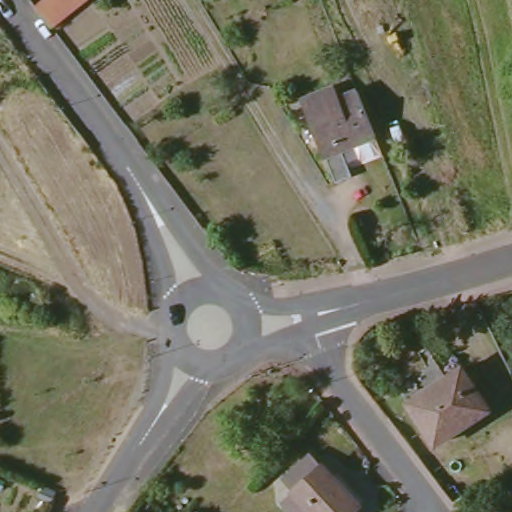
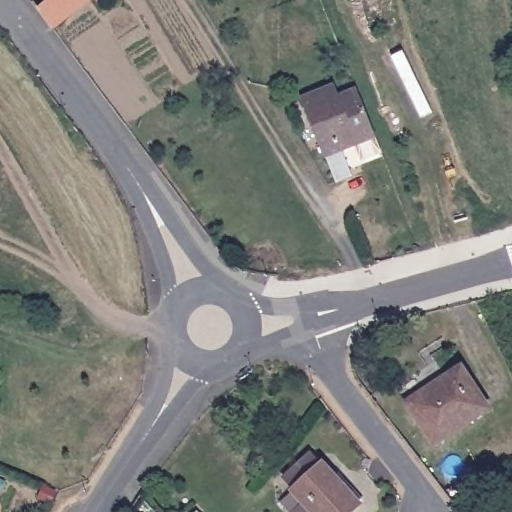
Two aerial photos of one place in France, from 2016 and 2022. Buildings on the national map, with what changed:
unchanged [(33,9),(41,0),(81,0),(50,32),(33,9)]
unchanged [(278,0),(295,0),(280,6),(278,0)]
unchanged [(355,152),(352,143),(339,147),(353,184),(337,190),(305,107),(337,95),(341,105),(357,97),(376,144),(355,152)]
unchanged [(402,401),(460,367),(485,411),(427,445),(402,401)]
unchanged [(296,492),(301,488),(290,475),(313,456),(323,467),(327,464),(345,486),(362,505),(356,510),(354,512),(294,512),(305,502),(296,492)]
unchanged [(162,512),(150,512),(156,506),(162,512)]

